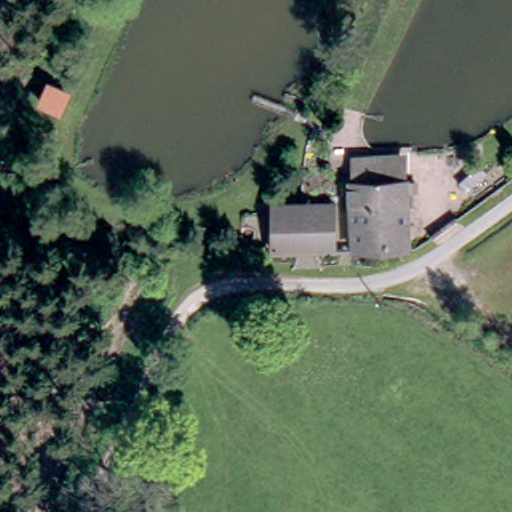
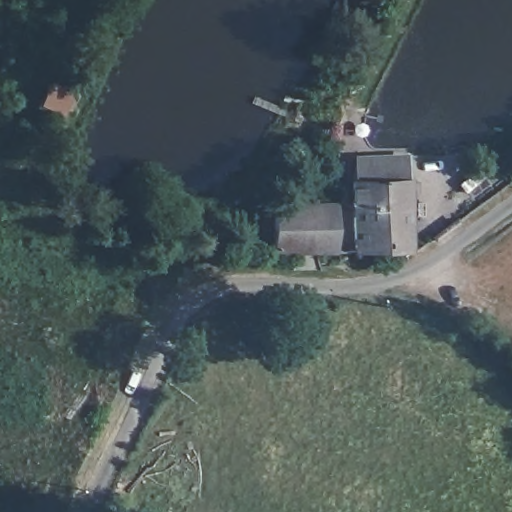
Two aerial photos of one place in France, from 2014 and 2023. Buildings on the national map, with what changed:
unchanged [(37,102),(45,84),(63,92),(55,111),(37,102)]
unchanged [(404,180),(409,180),(409,250),(355,250),(355,157),(403,157),(404,180)]
unchanged [(477,168),(482,175),(463,190),(457,182),(477,168)]
unchanged [(270,251),(270,217),(270,203),(332,202),(332,216),(332,251),(270,251)]

